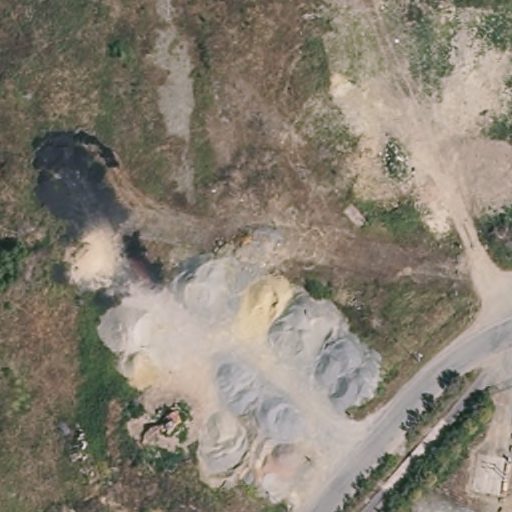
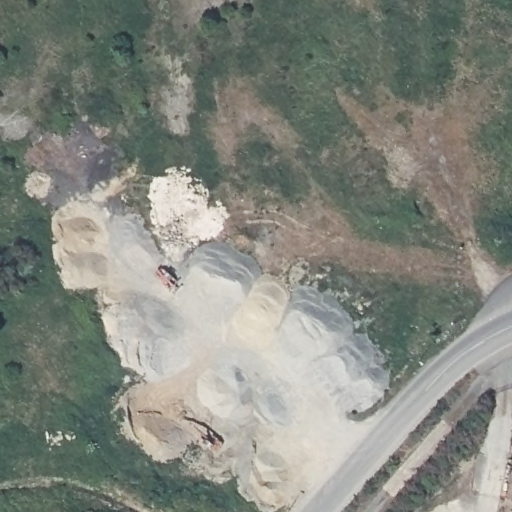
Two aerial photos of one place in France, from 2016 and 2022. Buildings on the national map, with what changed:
[]

